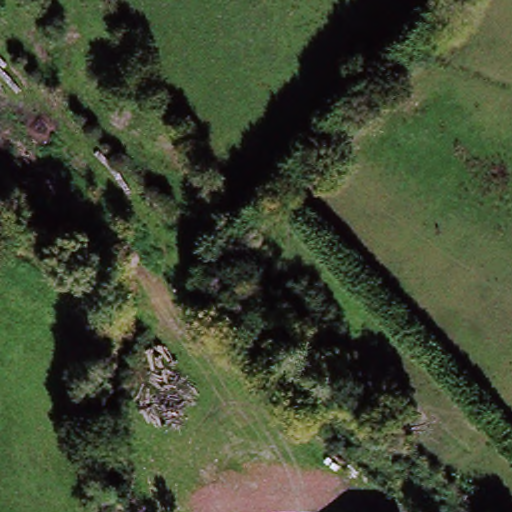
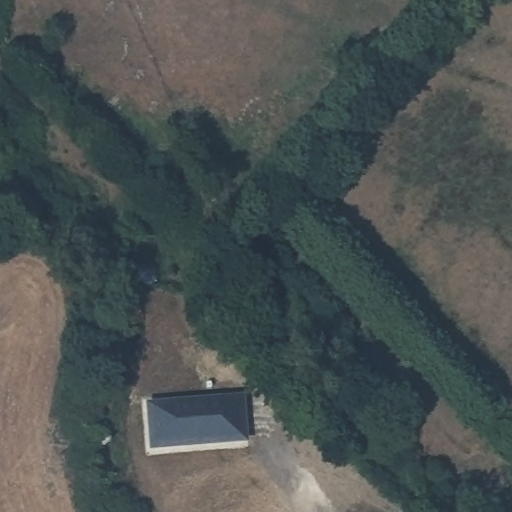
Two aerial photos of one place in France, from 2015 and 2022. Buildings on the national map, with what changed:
new [(245,395),(250,443),(151,452),(147,405),(245,395)]

